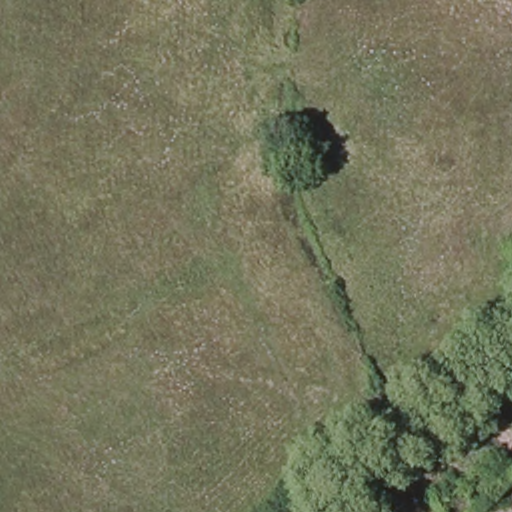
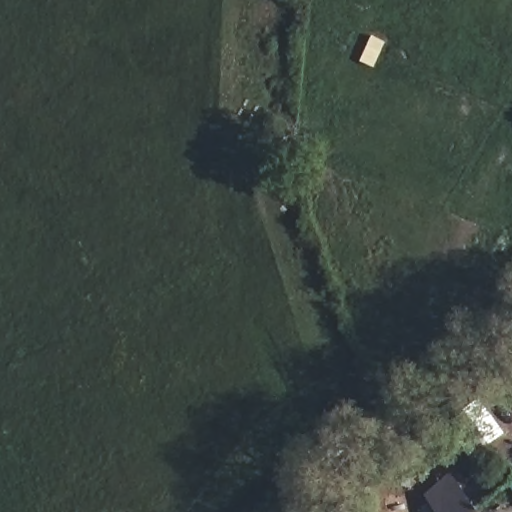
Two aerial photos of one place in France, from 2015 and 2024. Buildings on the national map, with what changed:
new [(479,506),(473,512),(438,512),(423,496),(447,473),(479,506)]

